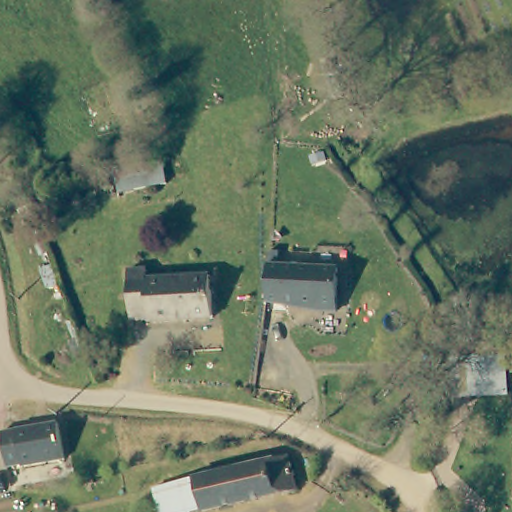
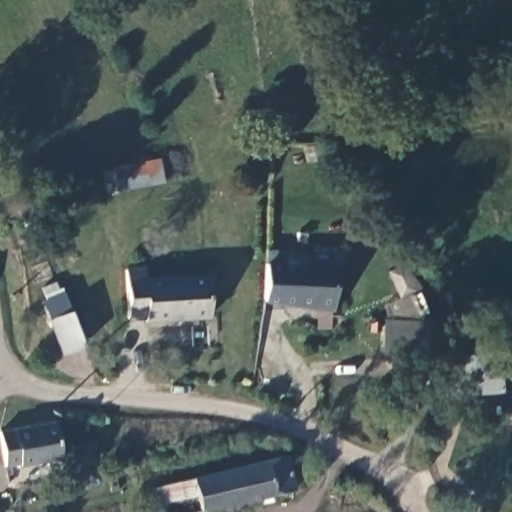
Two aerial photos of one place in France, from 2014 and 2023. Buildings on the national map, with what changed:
unchanged [(162,155),(166,178),(117,187),(114,165),(162,155)]
unchanged [(267,264),(338,265),(337,312),(267,302),(267,264)]
new [(408,264),(425,290),(403,298),(392,270),(408,264)]
unchanged [(148,270),(149,280),(211,277),(212,318),(149,322),(149,318),(130,318),(129,270),(148,270)]
new [(66,356),(51,320),(44,300),(48,299),(41,288),(56,281),(61,295),(66,292),(76,311),(89,347),(66,356)]
unchanged [(486,340),(490,360),(505,361),(506,399),(452,400),(450,363),(453,362),(453,342),(486,340)]
unchanged [(58,422),(65,459),(23,466),(22,465),(7,467),(1,432),(58,422)]
unchanged [(288,455),(296,489),(203,512),(195,478),(288,455)]
unchanged [(155,487),(195,478),(203,512),(160,512),(155,487)]

